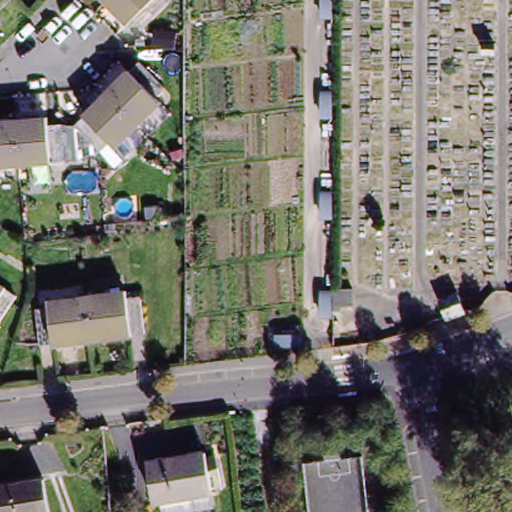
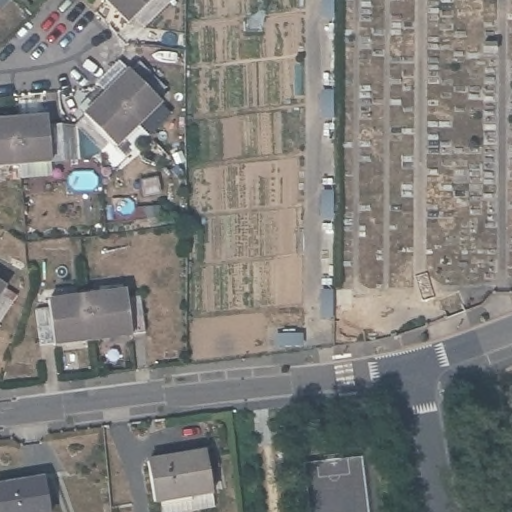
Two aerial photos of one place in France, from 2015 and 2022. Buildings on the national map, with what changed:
unchanged [(136,12),(130,19),(119,7),(112,0),(168,0),(146,22),(136,12)]
unchanged [(318,0),(329,0),(329,10),(318,10),(318,0)]
unchanged [(161,87),(151,97),(157,102),(134,124),(104,92),(134,62),(136,62),(161,87)]
unchanged [(317,111),(317,90),(329,91),(329,111),(317,111)]
unchanged [(134,124),(113,146),(124,157),(113,167),(73,126),(72,124),(104,92),(134,124)]
unchanged [(16,162),(12,120),(17,119),(19,119),(43,117),(45,124),(54,122),(72,124),(73,126),(76,156),(16,162)]
unchanged [(0,163),(0,121),(12,120),(16,162),(0,163)]
unchanged [(329,212),(318,212),(317,191),(329,191),(329,212)]
unchanged [(16,302),(0,327),(0,291),(16,302)]
unchanged [(356,292),(354,308),(337,308),(337,291),(356,292)]
unchanged [(122,293),(123,301),(137,299),(141,335),(122,337),(88,340),(83,298),(122,293)]
unchanged [(336,312),(325,312),(325,293),(336,293),(336,312)]
unchanged [(460,293),(467,312),(448,318),(441,300),(460,293)]
unchanged [(32,311),(47,310),(46,302),(83,298),(88,340),(36,346),(32,311)]
unchanged [(307,333),(306,348),(278,347),(278,333),(307,333)]
unchanged [(177,512),(168,512),(165,498),(155,501),(149,462),(206,452),(207,458),(218,456),(220,467),(209,470),(212,491),(215,506),(177,512)]
unchanged [(44,480),(50,512),(0,512),(0,487),(44,480)]

